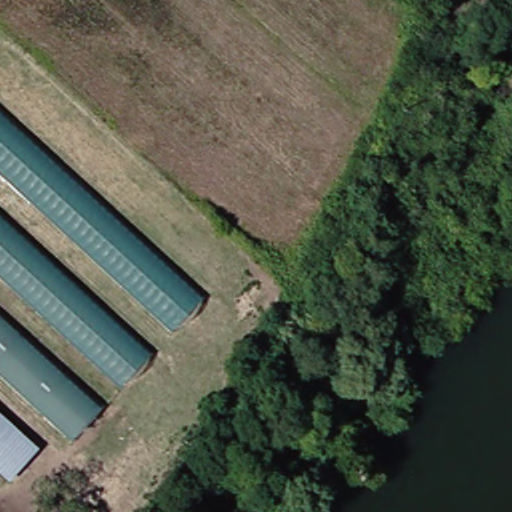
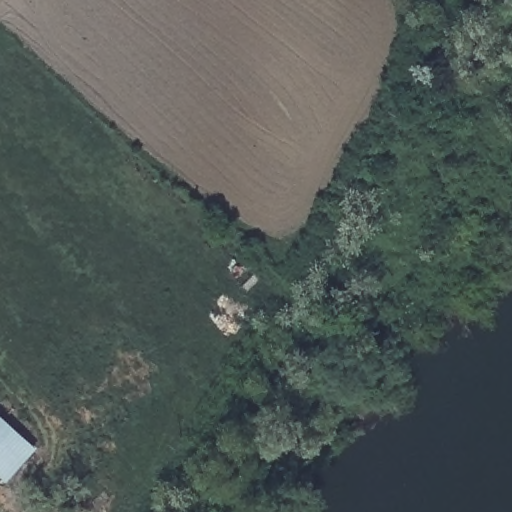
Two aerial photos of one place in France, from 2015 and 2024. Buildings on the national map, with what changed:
demolished [(0,167),(0,104),(208,294),(176,326),(0,167)]
demolished [(155,350),(124,383),(0,268),(0,211),(155,350)]
demolished [(109,405),(73,440),(0,372),(0,307),(109,405)]
unchanged [(45,448),(13,481),(0,469),(0,407),(45,448)]

